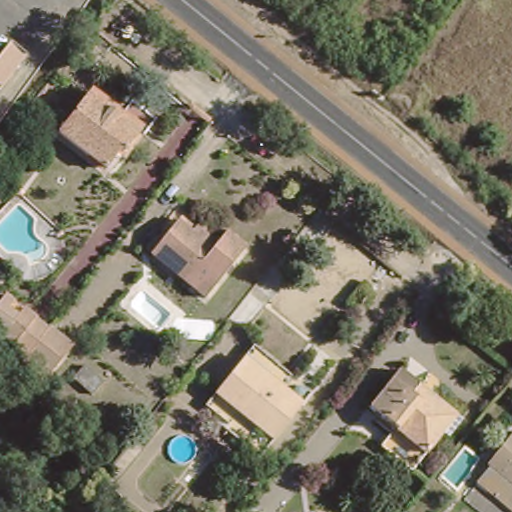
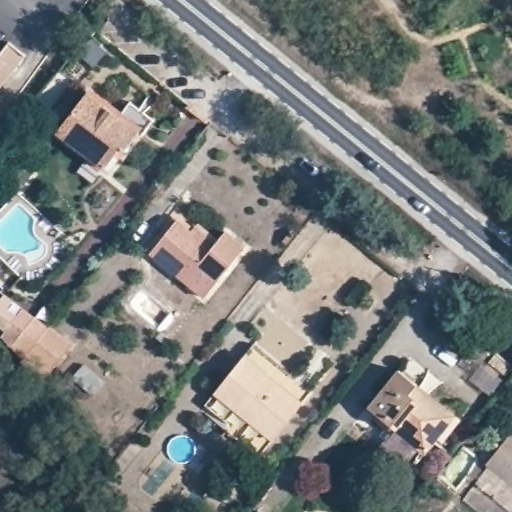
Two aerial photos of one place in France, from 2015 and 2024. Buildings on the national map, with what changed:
unchanged [(140,127),(123,148),(120,146),(103,167),(56,130),(88,88),(140,127)]
unchanged [(202,299),(151,256),(179,222),(191,232),(195,227),(216,244),(225,233),(243,249),(202,299)]
unchanged [(14,297),(8,304),(17,311),(23,303),(49,323),(22,357),(12,345),(2,332),(5,327),(0,323),(0,296),(5,290),(14,297)]
unchanged [(73,340),(44,377),(21,359),(22,357),(49,323),(51,322),(73,340)]
unchanged [(300,406),(273,440),(216,393),(243,360),(300,406)]
unchanged [(102,382),(91,395),(72,378),(84,365),(102,382)]
unchanged [(452,435),(446,430),(415,467),(384,442),(398,425),(372,402),(403,366),(421,381),(446,402),(460,413),(464,418),(452,435)]
unchanged [(492,464),(489,462),(512,434),(512,480),(492,464)]
unchanged [(479,481),(492,464),(512,480),(512,508),(479,481)]
unchanged [(487,512),(467,496),(479,481),(512,508),(512,512),(487,512)]
unchanged [(386,512),(368,504),(372,493),(391,502),(386,512)]

